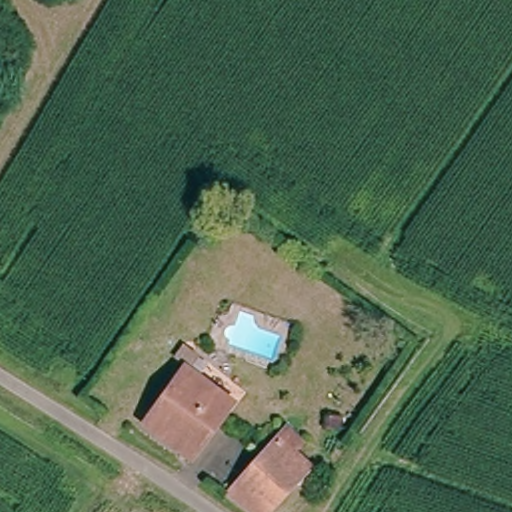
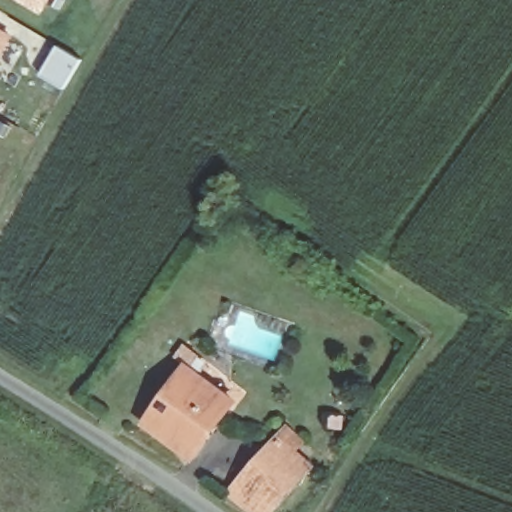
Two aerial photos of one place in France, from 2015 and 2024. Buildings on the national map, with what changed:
new [(41,14),(16,0),(49,0),(41,14)]
new [(0,57),(0,27),(14,35),(0,57)]
new [(56,44),(83,59),(65,90),(39,75),(56,44)]
unchanged [(182,345),(192,353),(184,364),(174,356),(182,345)]
unchanged [(186,457),(141,422),(184,364),(229,398),(186,457)]
unchanged [(302,441),(293,451),(309,467),(267,512),(250,512),(227,493),(286,428),(302,441)]

